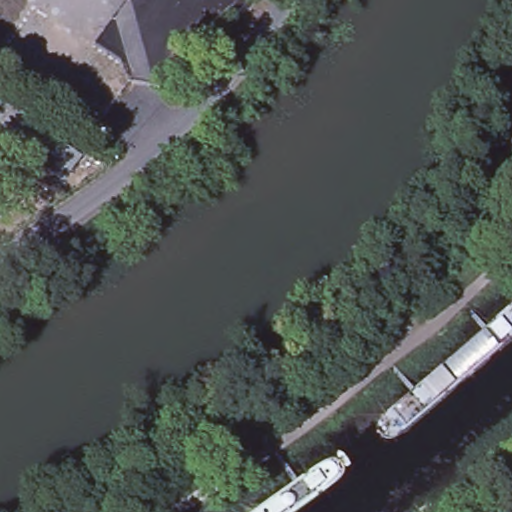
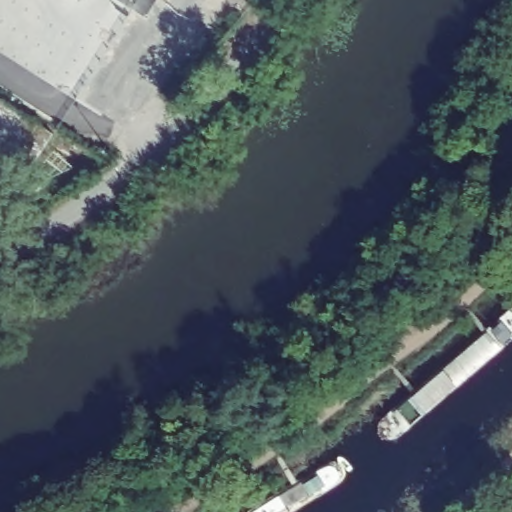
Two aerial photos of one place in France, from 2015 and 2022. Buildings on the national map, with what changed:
unchanged [(36,164),(0,140),(0,100),(55,136),(36,164)]

